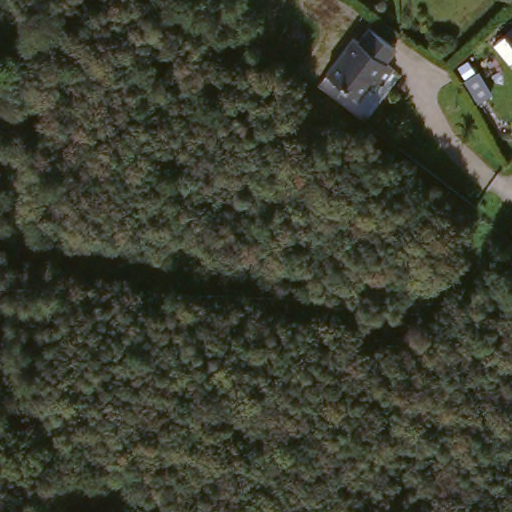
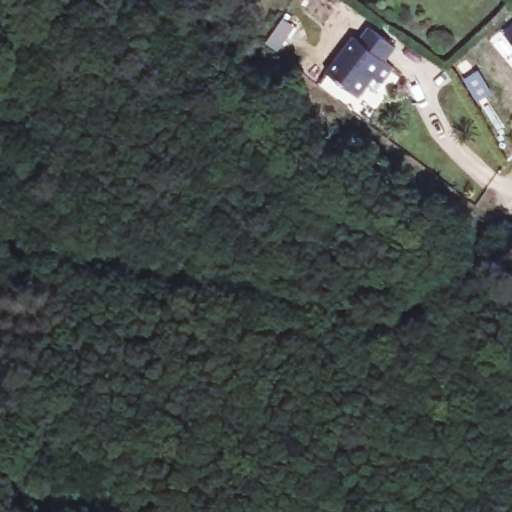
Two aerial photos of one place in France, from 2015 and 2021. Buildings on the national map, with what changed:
unchanged [(358,31),(392,54),(384,67),(391,73),(382,89),(373,82),(360,102),(327,80),(358,31)]
unchanged [(503,41),(512,32),(512,51),(503,41)]

